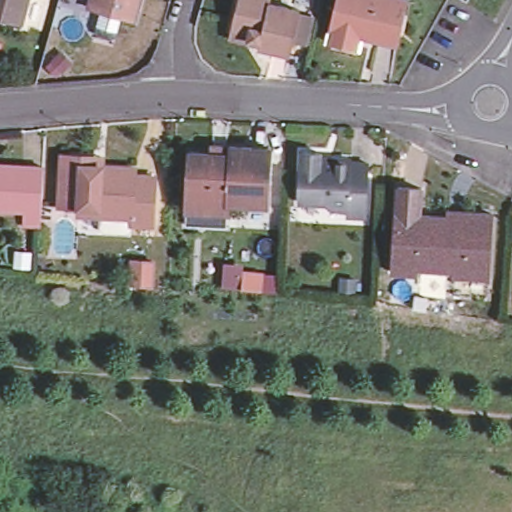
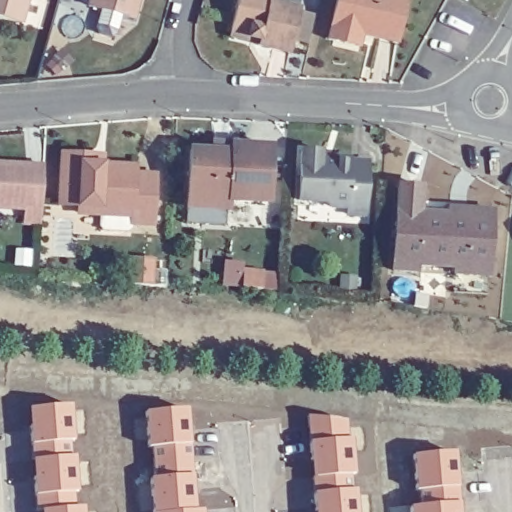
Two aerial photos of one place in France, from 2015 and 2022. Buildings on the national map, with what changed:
unchanged [(0,18),(0,0),(28,0),(21,24),(0,18)]
unchanged [(98,34),(96,29),(101,10),(88,6),(90,0),(139,0),(134,19),(121,15),(116,34),(111,38),(98,34)]
unchanged [(231,29),(237,0),(270,0),(270,3),(300,10),(290,53),(258,46),(259,40),(249,38),(250,34),(231,29)]
unchanged [(333,41),(328,40),(335,7),(337,0),(407,0),(397,43),(361,35),(359,47),(350,45),(333,41)]
unchanged [(186,219),(187,204),(190,145),(229,147),(230,140),(270,142),(267,198),(228,196),(227,206),(226,221),(186,219)]
unchanged [(347,214),(347,208),(332,207),(327,202),(298,201),(301,150),(322,151),(321,156),(333,157),(351,158),(351,161),(369,162),(366,215),(347,214)]
unchanged [(132,232),(108,231),(105,227),(106,214),(84,213),(84,206),(65,205),(67,154),(94,155),(107,156),(107,165),(141,167),(140,174),(160,175),(158,225),(136,223),(136,228),(132,232)]
unchanged [(24,224),(24,209),(0,208),(0,164),(44,166),(41,224),(24,224)]
unchanged [(392,275),(398,191),(422,192),(420,218),(447,220),(448,214),(468,215),(492,216),(488,281),(455,279),(416,277),(392,275)]
unchanged [(152,260),(151,286),(131,285),(132,259),(152,260)]
unchanged [(244,272),(264,274),(262,289),(244,287),(242,287),(244,272)]
new [(78,438),(72,438),(73,452),(79,452),(81,490),(77,490),(78,503),(88,503),(89,512),(43,512),(43,506),(39,506),(32,405),(75,400),(78,438)]
new [(199,508),(207,508),(207,512),(155,512),(153,476),(158,476),(155,443),(149,443),(149,408),(190,404),(199,508)]
new [(350,417),(351,437),(356,436),(359,473),(353,473),(354,486),(360,486),(361,512),(318,512),(311,415),(350,417)]
new [(464,512),(415,512),(414,504),(423,504),(423,486),(419,486),(417,451),(459,448),(464,512)]

